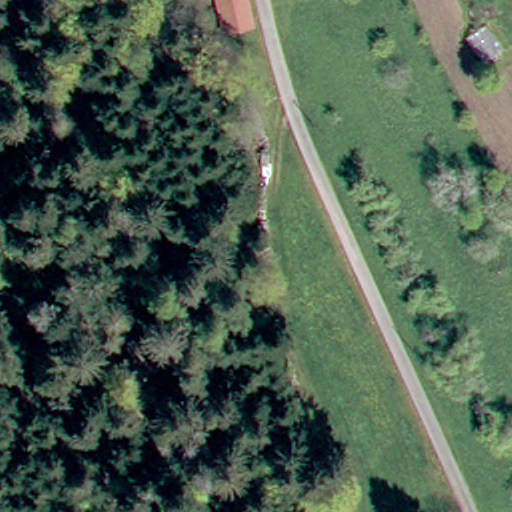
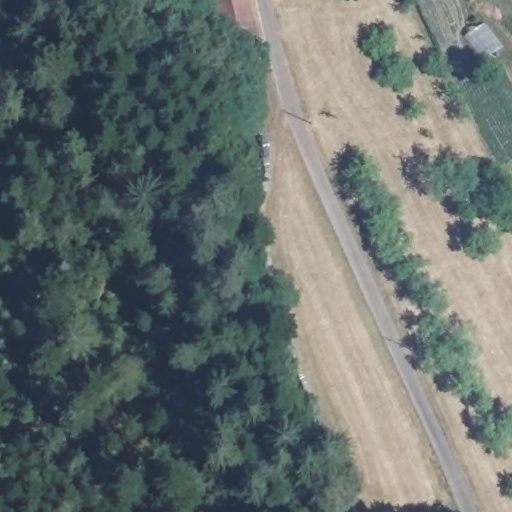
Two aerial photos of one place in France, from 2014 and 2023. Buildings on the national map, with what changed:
unchanged [(247,8),(218,18),(213,0),(245,0),(247,8)]

